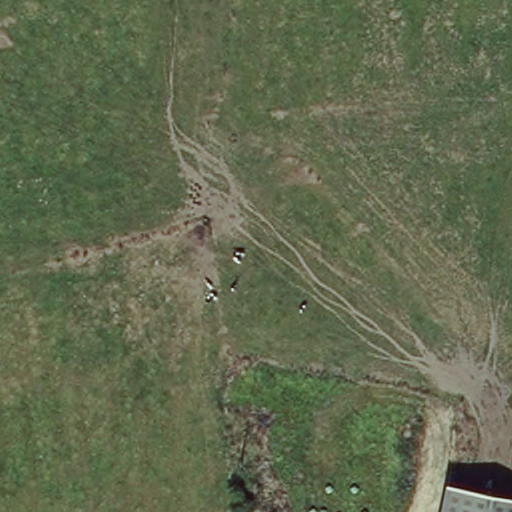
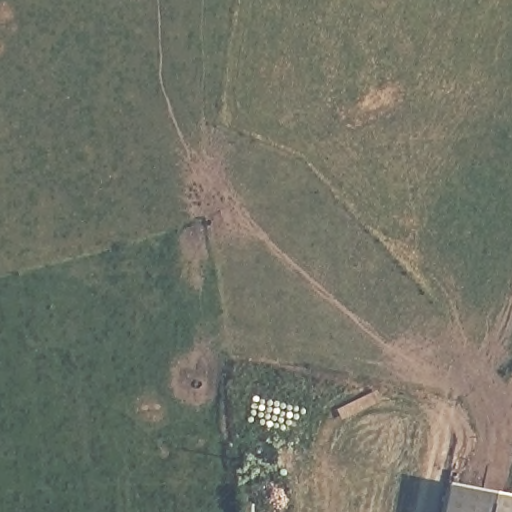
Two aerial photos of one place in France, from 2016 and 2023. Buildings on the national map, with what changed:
unchanged [(512,501),(512,512),(448,512),(453,488),(512,501)]

